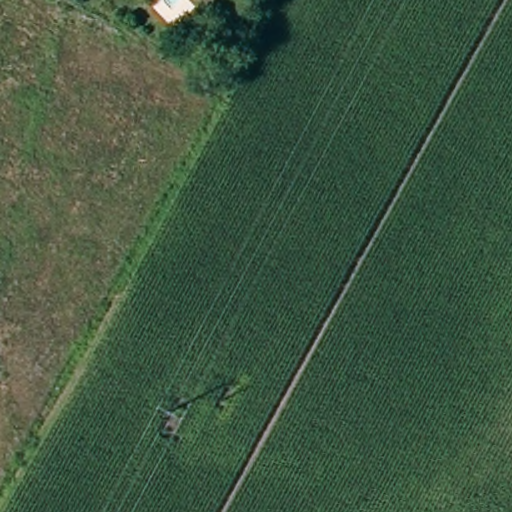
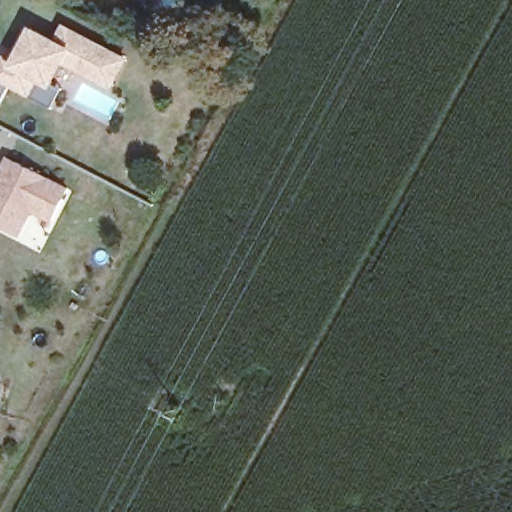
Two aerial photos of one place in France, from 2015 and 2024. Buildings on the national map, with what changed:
new [(10,87),(1,106),(0,105),(0,64),(2,60),(10,64),(16,51),(27,29),(55,44),(63,28),(125,59),(111,86),(63,62),(51,85),(63,91),(53,110),(28,98),(29,96),(10,87)]
new [(10,225),(0,220),(0,181),(4,174),(0,172),(8,155),(68,184),(53,214),(33,205),(21,230),(10,225)]

